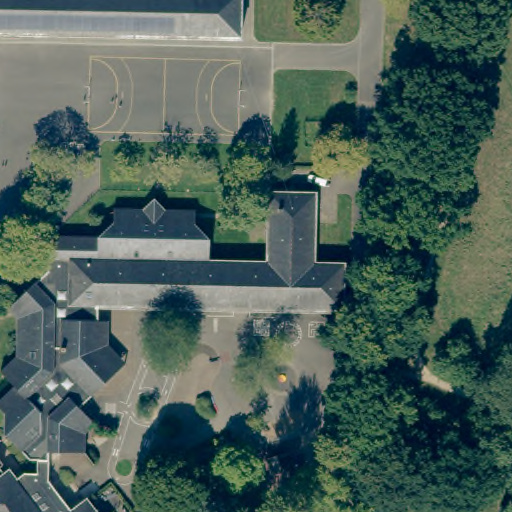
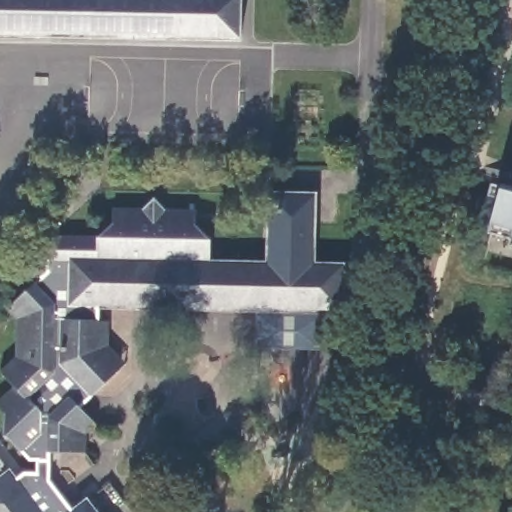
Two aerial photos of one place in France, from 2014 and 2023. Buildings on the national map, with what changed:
unchanged [(177,30),(136,30),(135,33),(133,33),(133,29),(92,29),(91,31),(89,31),(89,29),(49,29),(49,30),(28,30),(28,29),(0,28),(0,0),(238,0),(238,33),(221,33),(221,31),(179,30),(180,33),(177,33),(177,30)]
new [(509,247),(512,238),(489,232),(491,222),(498,197),(497,196),(489,194),(492,183),(500,185),(501,187),(510,189),(512,180),(512,247),(509,247)]
unchanged [(0,469),(5,466),(6,468),(5,469),(11,477),(22,468),(31,470),(31,456),(25,456),(2,431),(1,410),(0,408),(0,391),(9,382),(0,371),(0,363),(13,351),(13,314),(5,304),(36,275),(29,268),(35,254),(45,254),(45,232),(96,233),(109,217),(110,204),(139,204),(150,195),(151,196),(160,205),(191,207),(191,220),(206,237),(205,258),(263,259),(265,189),(311,190),(308,259),(338,260),(338,259),(340,259),(339,309),(319,308),(318,306),(252,305),(252,307),(249,307),(249,304),(226,304),(225,305),(223,305),(223,304),(181,303),(181,304),(179,304),(179,303),(137,302),(136,304),(135,303),(135,302),(96,300),(96,317),(104,318),(103,338),(121,359),(116,364),(75,402),(91,422),(81,429),(81,448),(45,448),(43,478),(66,508),(81,497),(93,512),(0,512),(0,469)]
unchanged [(316,215),(317,191),(333,191),(332,217),(316,215)]
unchanged [(0,458),(0,457),(1,458),(0,458)]

